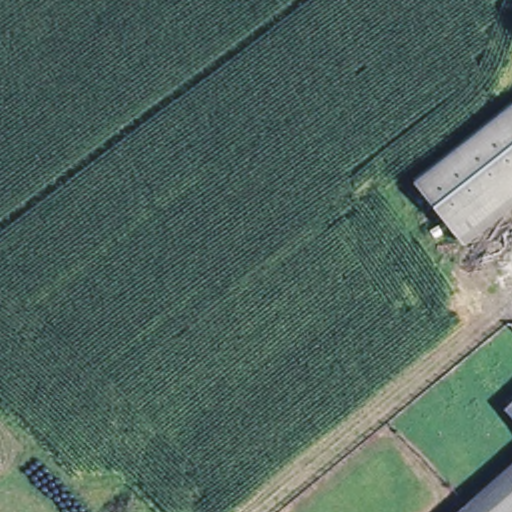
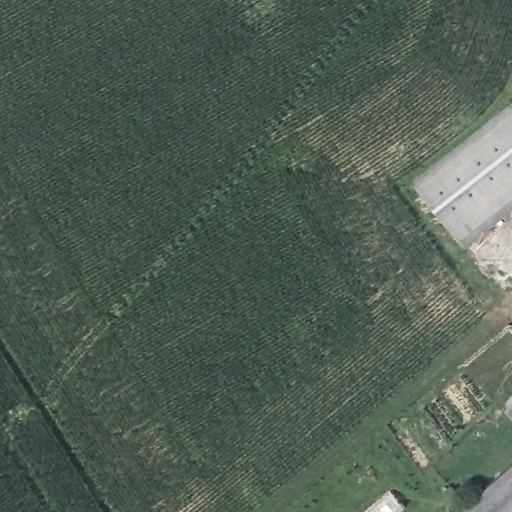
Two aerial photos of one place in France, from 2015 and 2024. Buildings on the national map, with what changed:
unchanged [(512,109),(512,203),(462,242),(417,185),(512,109)]
unchanged [(512,404),(512,417),(506,410),(512,404)]
unchanged [(512,511),(511,512),(457,512),(512,464),(512,511)]

